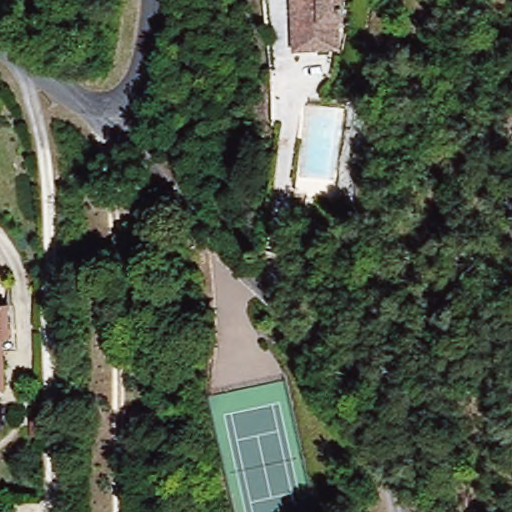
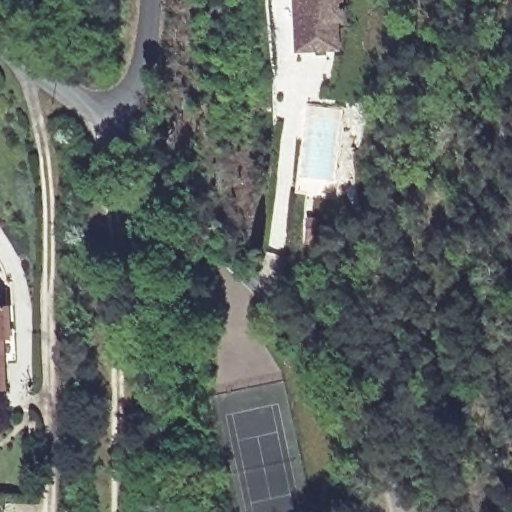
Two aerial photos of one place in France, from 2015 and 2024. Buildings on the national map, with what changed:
unchanged [(337,21),(337,51),(294,52),(292,0),(347,0),(347,21),(337,21)]
unchanged [(5,311),(11,341),(0,341),(0,310),(5,311)]

